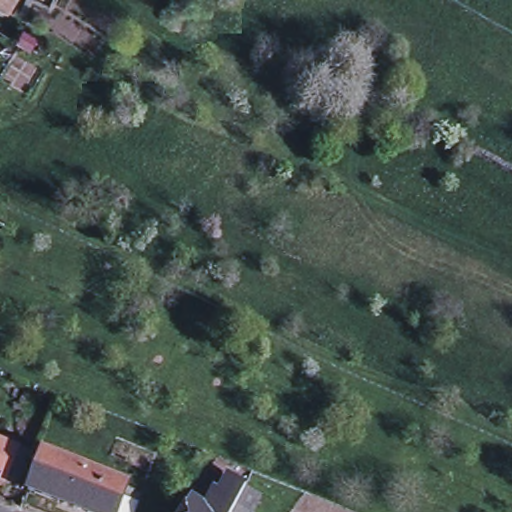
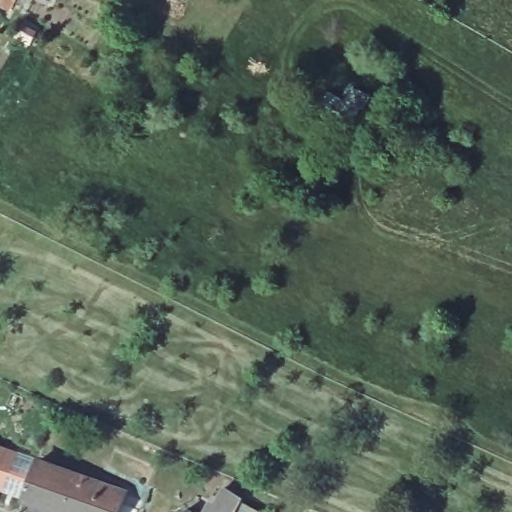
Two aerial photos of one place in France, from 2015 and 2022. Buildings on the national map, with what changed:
unchanged [(15,0),(13,3),(7,11),(0,7),(0,0),(8,0),(15,0)]
unchanged [(175,20),(162,13),(168,0),(181,0),(185,1),(175,20)]
unchanged [(17,491),(0,485),(0,445),(30,458),(17,491)]
unchanged [(130,512),(77,512),(21,491),(35,455),(117,486),(112,497),(133,505),(130,512)]
unchanged [(212,502),(216,503),(225,489),(242,499),(235,512),(206,512),(212,502)]
unchanged [(187,510),(192,512),(186,512),(187,510)]

